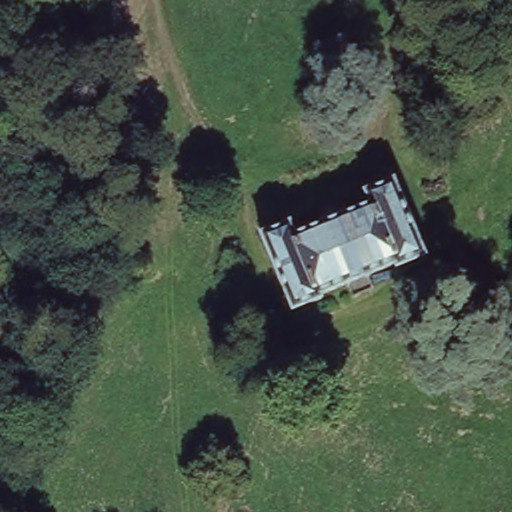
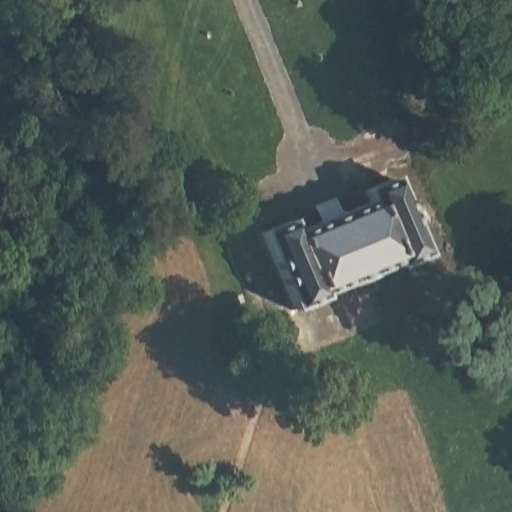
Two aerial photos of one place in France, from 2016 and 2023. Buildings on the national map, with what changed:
unchanged [(288,226),(292,233),(368,204),(363,196),(397,186),(422,260),(395,271),(391,266),(364,276),(370,291),(343,302),(336,288),(318,293),(317,301),(287,312),(260,236),(288,226)]

